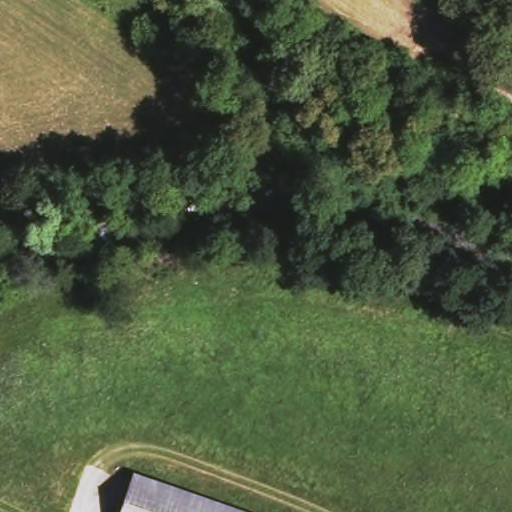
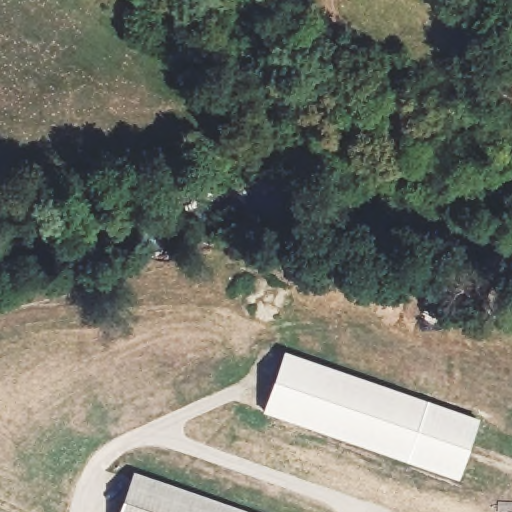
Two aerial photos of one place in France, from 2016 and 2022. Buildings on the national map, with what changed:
new [(509,52),(512,54),(512,93),(494,82),(509,52)]
demolished [(492,92),(499,57),(512,60),(512,97),(511,96),(492,92)]
new [(285,354),(476,419),(457,477),(266,411),(285,354)]
demolished [(261,512),(113,512),(124,471),(261,512)]
new [(243,512),(123,512),(136,474),(243,512)]

